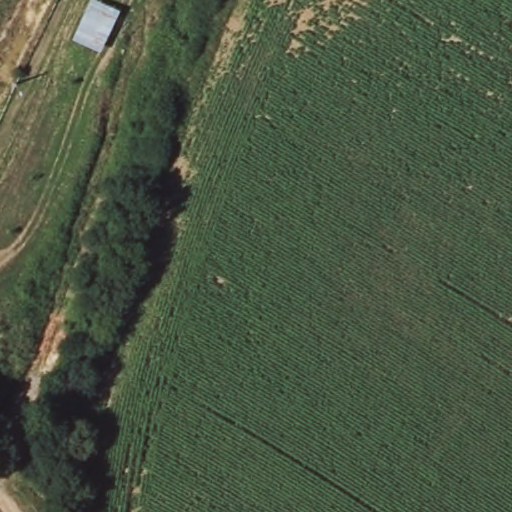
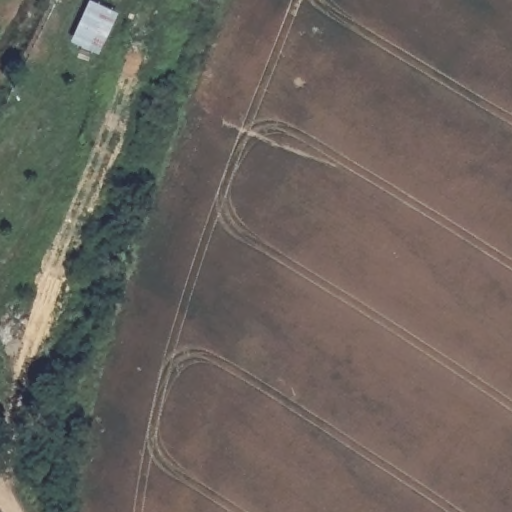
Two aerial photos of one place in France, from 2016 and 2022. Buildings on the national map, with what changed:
unchanged [(72,41),(90,0),(95,0),(120,11),(100,54),(72,41)]

